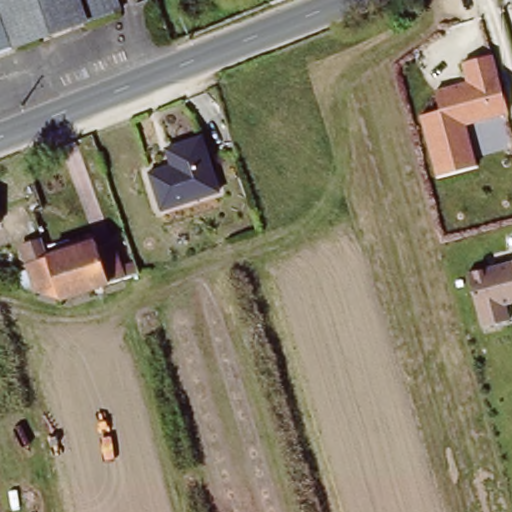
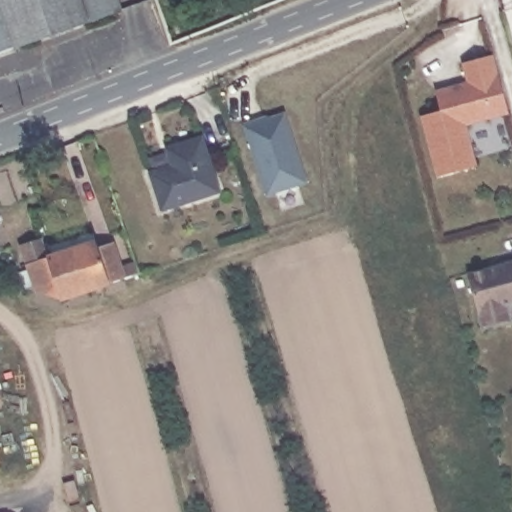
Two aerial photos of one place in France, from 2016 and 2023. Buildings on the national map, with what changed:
unchanged [(122,9),(0,55),(0,0),(119,0),(122,9)]
unchanged [(510,111),(465,122),(475,164),(433,174),(420,115),(440,110),(435,89),(465,81),(459,60),(492,52),(510,111)]
new [(267,194),(244,125),(243,122),(267,115),(269,116),(286,111),(308,182),(267,194)]
unchanged [(160,212),(148,175),(172,165),(167,151),(200,139),(217,192),(160,212)]
unchanged [(22,264),(17,245),(38,239),(44,257),(91,242),(93,247),(107,244),(115,267),(132,262),(135,273),(57,297),(30,292),(22,264)]
unchanged [(468,270),(512,260),(512,302),(506,303),(510,320),(482,326),(468,270)]

